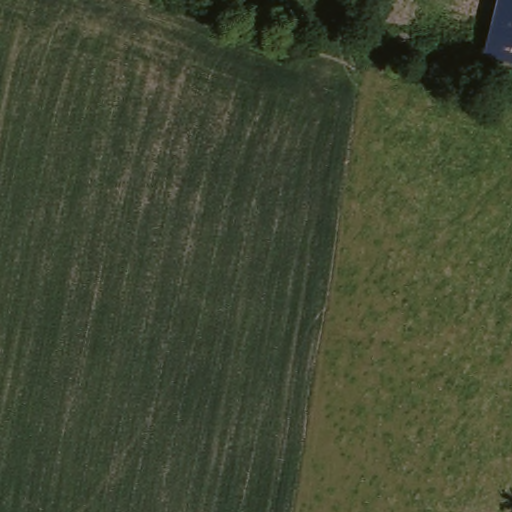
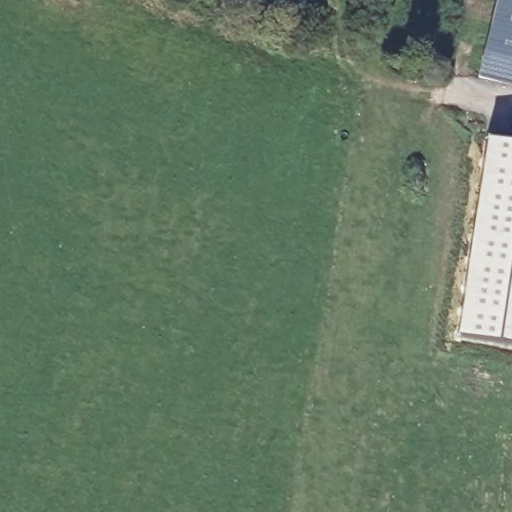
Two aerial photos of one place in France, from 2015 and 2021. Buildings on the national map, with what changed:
unchanged [(512,86),(475,77),(493,0),(512,0),(512,86)]
new [(512,147),(512,349),(452,340),(488,142),(512,147)]

